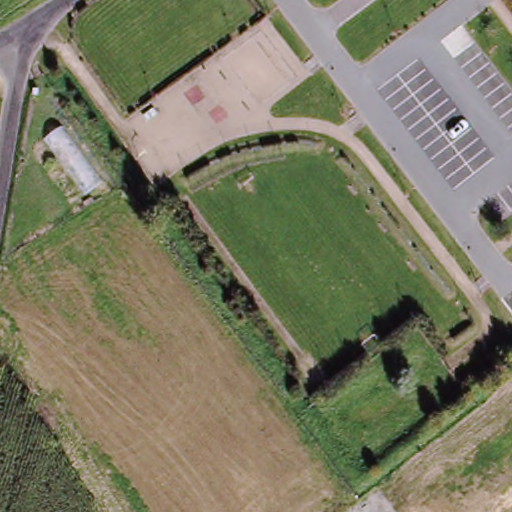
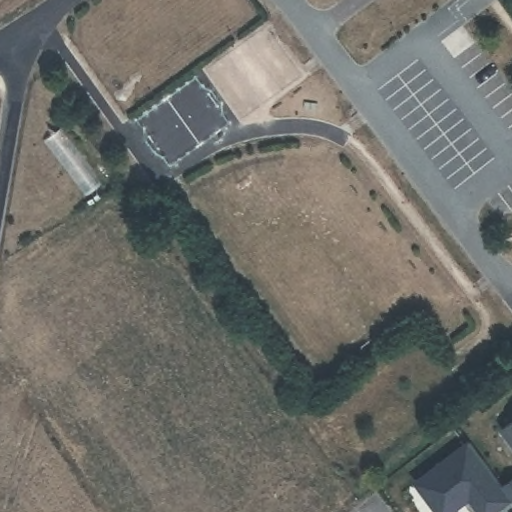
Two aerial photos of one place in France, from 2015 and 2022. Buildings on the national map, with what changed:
new [(499,430),(512,420),(512,447),(499,430)]
new [(448,512),(440,512),(417,481),(470,442),(511,497),(491,512),(482,512),(470,496),(462,502),(448,512)]

